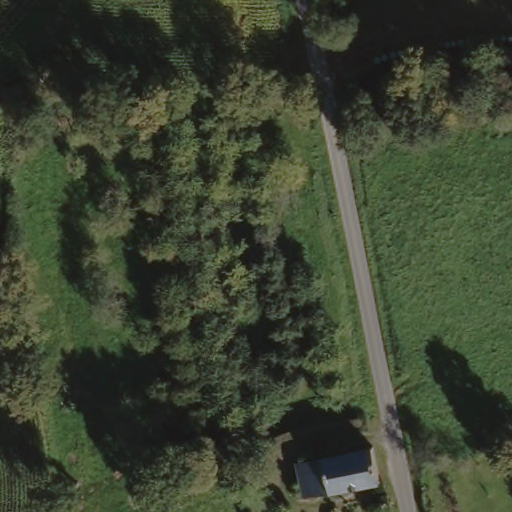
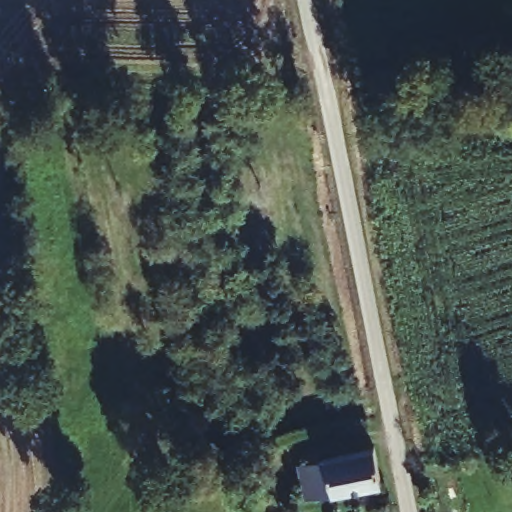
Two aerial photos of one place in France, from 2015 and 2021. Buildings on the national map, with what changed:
unchanged [(371,446),(379,477),(357,482),(299,498),(290,465),(370,443),(371,446)]

